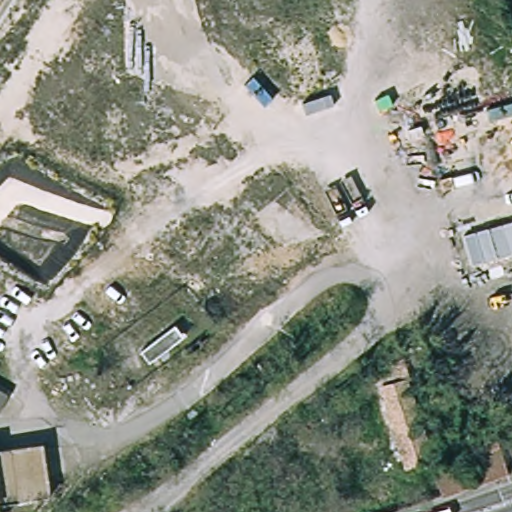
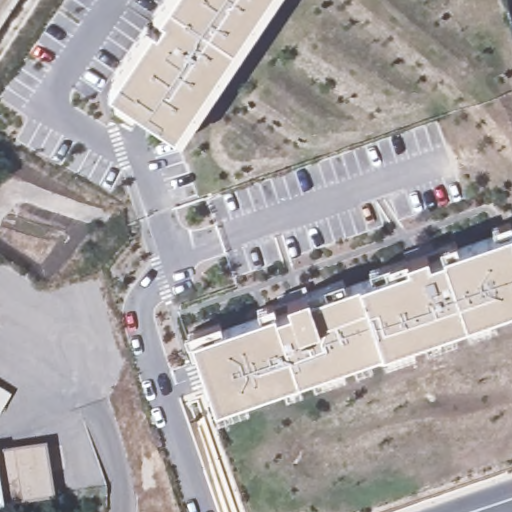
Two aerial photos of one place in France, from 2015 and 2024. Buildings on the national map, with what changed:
new [(110,103),(113,98),(108,93),(115,82),(117,83),(111,78),(145,27),(151,31),(155,33),(162,23),(158,21),(173,0),(268,0),(175,138),(134,110),(133,112),(130,110),(127,114),(110,103)]
new [(163,0),(173,0),(158,21),(153,16),(163,0)]
new [(268,0),(277,0),(181,144),(174,140),(268,0)]
new [(211,412),(215,410),(191,342),(222,331),(221,328),(259,316),(260,318),(257,310),(273,305),(276,313),(290,309),(286,300),(306,293),(343,280),(345,288),(371,277),(372,279),(369,272),(406,259),(427,251),(430,259),(442,255),(439,247),(455,241),(457,249),(495,236),(492,228),(509,222),(512,230),(512,308),(496,312),(499,320),(484,324),(482,318),(485,326),(468,332),(466,324),(454,328),(457,335),(443,340),(425,347),(423,339),(413,342),(415,351),(399,356),(396,348),(398,354),(385,359),(383,353),(370,357),(372,365),(356,371),(353,363),(343,367),(345,375),(315,386),(311,378),(300,382),(303,389),(286,395),(284,387),(246,400),(249,408),(214,420),(211,412)]
new [(220,323),(222,331),(191,342),(192,343),(191,344),(188,334),(220,323)]
demolished [(408,468),(377,373),(404,359),(410,379),(406,381),(430,462),(408,468)]
unchanged [(0,392),(2,393),(0,397),(0,392)]
demolished [(430,462),(496,442),(498,444),(512,440),(512,471),(440,496),(430,462)]
unchanged [(0,506),(0,450),(39,444),(48,499),(0,506)]

